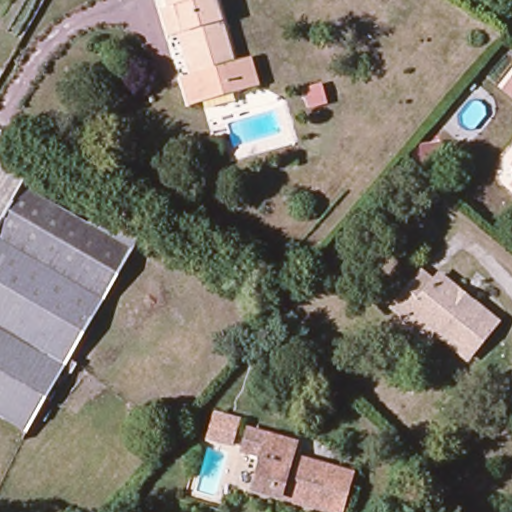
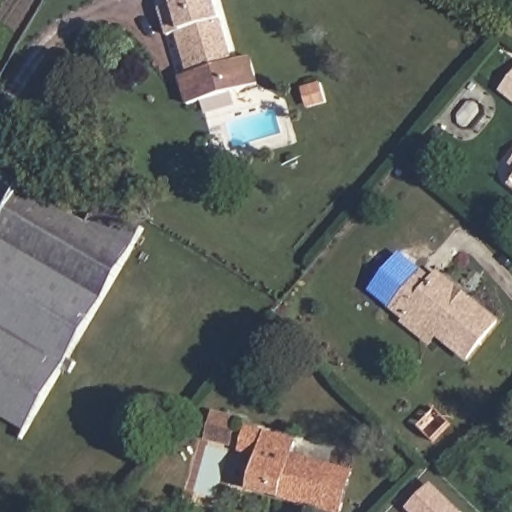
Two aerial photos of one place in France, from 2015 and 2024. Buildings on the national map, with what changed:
unchanged [(230,65),(248,61),(255,90),(185,107),(182,95),(178,79),(194,75),(183,31),(163,36),(156,7),(162,5),(161,0),(214,0),(230,65)]
unchanged [(502,90),(512,78),(512,98),(502,90)]
unchanged [(131,258),(70,358),(81,365),(75,376),(62,368),(56,380),(23,433),(0,420),(0,228),(21,191),(131,258)]
unchanged [(405,331),(412,322),(408,319),(403,323),(390,313),(420,279),(430,287),(436,280),(458,297),(467,305),(496,328),(465,365),(435,340),(426,350),(405,331)]
unchanged [(237,422),(229,450),(206,443),(214,417),(237,422)]
unchanged [(255,486),(261,462),(242,456),(247,435),(293,448),(290,460),(327,470),(316,510),(278,500),(252,493),(255,486)]
unchanged [(341,512),(321,512),(316,510),(327,470),(350,477),(341,512)]
new [(410,512),(408,510),(433,484),(462,512),(410,512)]

